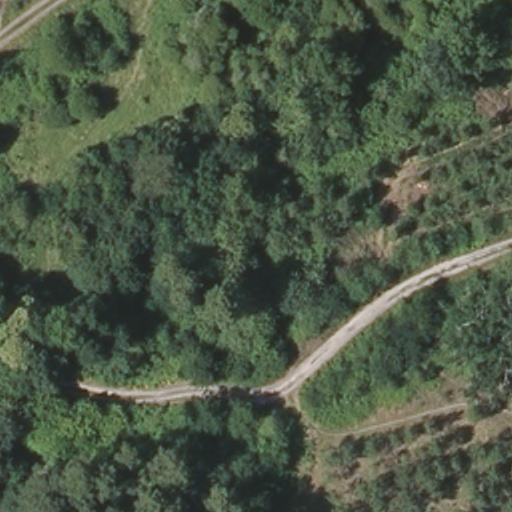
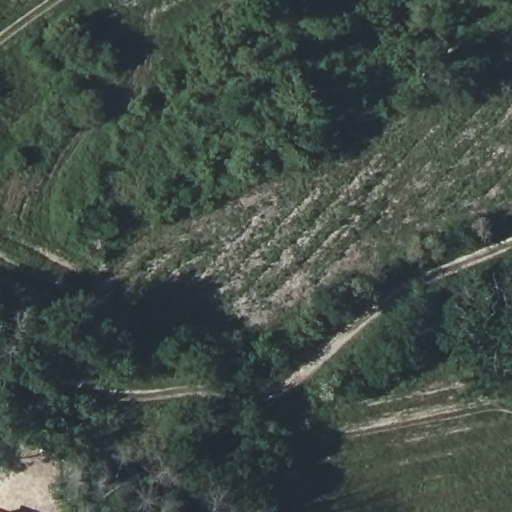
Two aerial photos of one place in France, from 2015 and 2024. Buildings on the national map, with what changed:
unchanged [(0,510),(3,512),(0,512),(0,510)]

